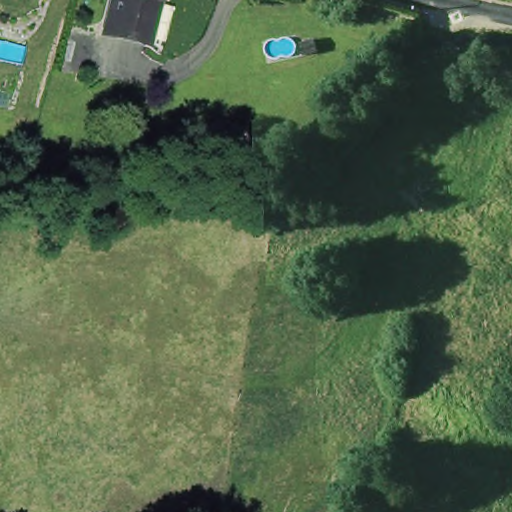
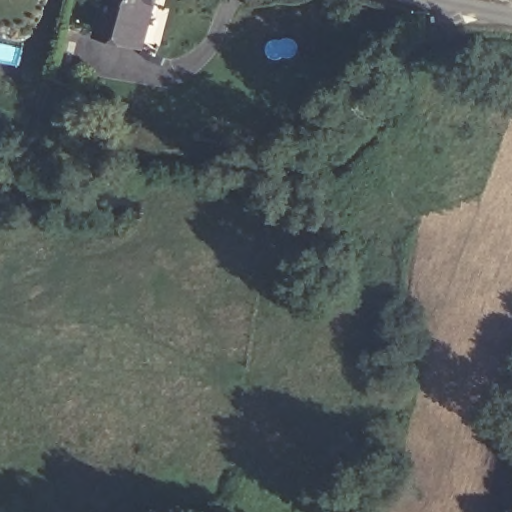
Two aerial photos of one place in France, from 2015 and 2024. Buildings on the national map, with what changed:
unchanged [(113,0),(161,0),(152,44),(151,51),(104,41),(105,34),(113,0)]

